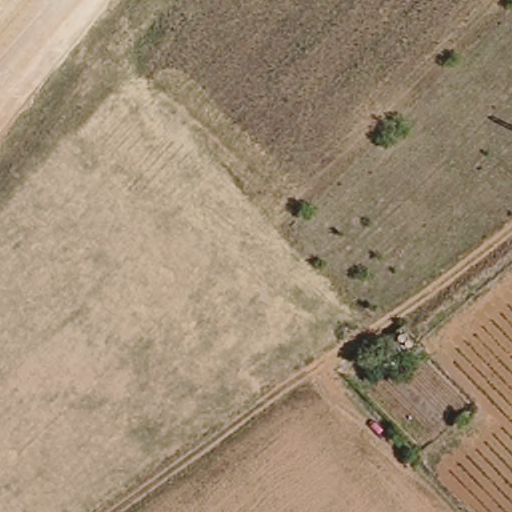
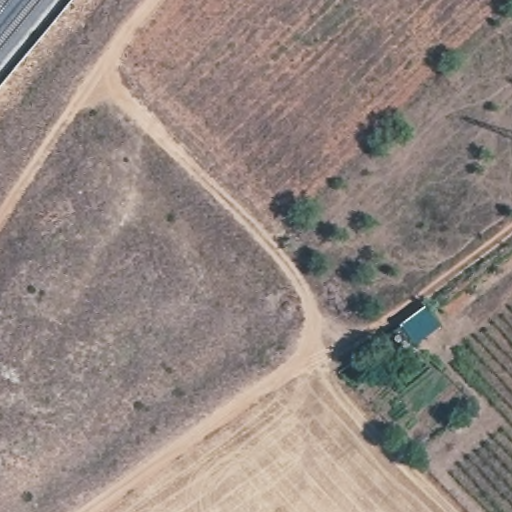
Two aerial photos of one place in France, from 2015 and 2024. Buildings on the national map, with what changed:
unchanged [(424,343),(408,351),(396,330),(410,321),(424,343)]

